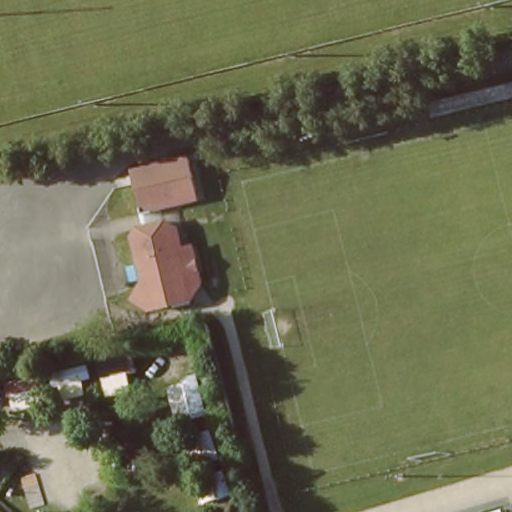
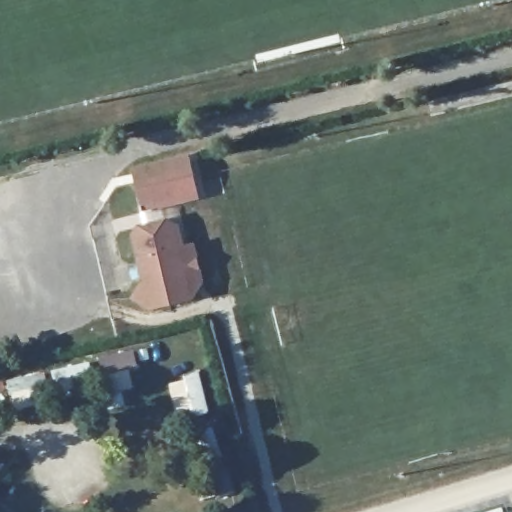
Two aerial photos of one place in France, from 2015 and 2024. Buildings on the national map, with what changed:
unchanged [(432,128),(427,107),(512,85),(512,108),(432,128)]
unchanged [(147,214),(143,201),(135,170),(193,155),(201,187),(205,199),(147,214)]
unchanged [(178,245),(190,244),(200,279),(188,298),(137,312),(131,289),(139,286),(125,230),(171,219),(178,245)]
unchanged [(0,469),(3,471),(0,476),(0,469)]

